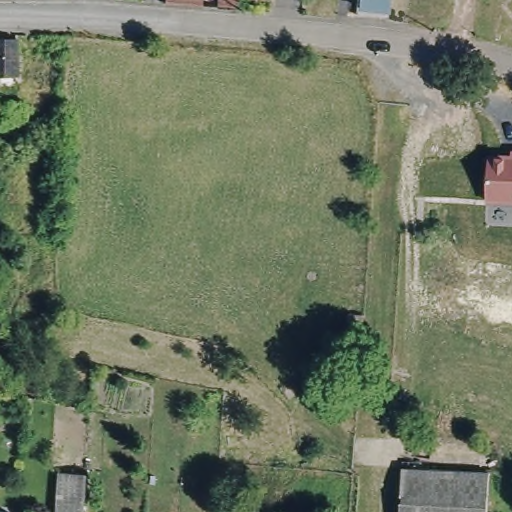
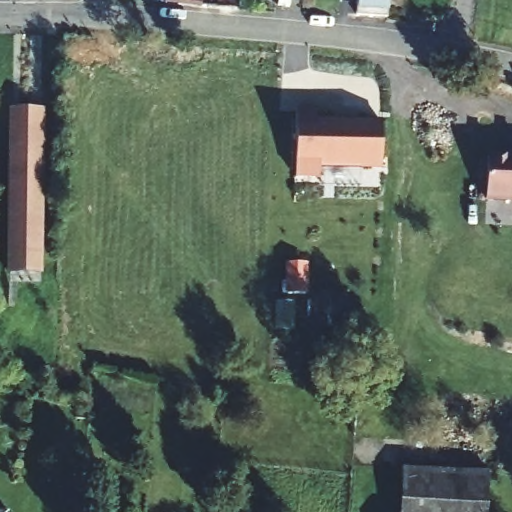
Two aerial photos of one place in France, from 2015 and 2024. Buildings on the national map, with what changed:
unchanged [(154,4),(155,0),(184,0),(184,5),(154,4)]
demolished [(198,0),(229,0),(228,9),(197,6),(198,0)]
new [(218,9),(219,0),(239,0),(238,10),(218,9)]
unchanged [(358,8),(358,0),(388,0),(388,15),(358,8)]
demolished [(15,82),(0,82),(0,33),(16,33),(15,82)]
new [(9,107),(47,109),(43,276),(10,273),(9,107)]
new [(319,109),(320,119),(384,120),(384,170),(322,170),(323,181),(296,181),(296,109),(319,109)]
unchanged [(484,198),(484,151),(512,153),(512,200),(484,198)]
unchanged [(401,496),(403,470),(485,475),(484,494),(483,512),(399,512),(401,496)]
unchanged [(58,471),(85,473),(83,512),(56,512),(58,471)]
unchanged [(8,512),(0,512),(0,511),(8,511),(8,512)]

